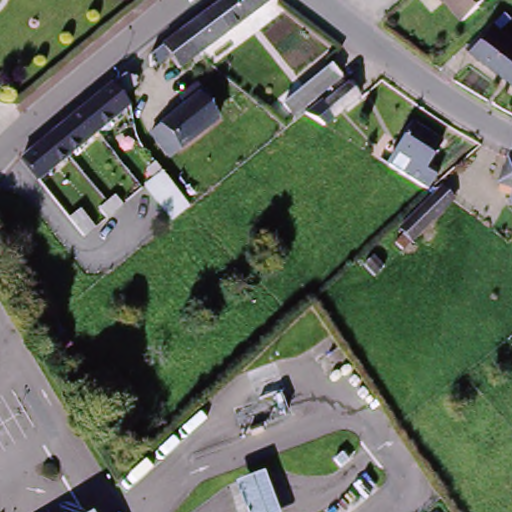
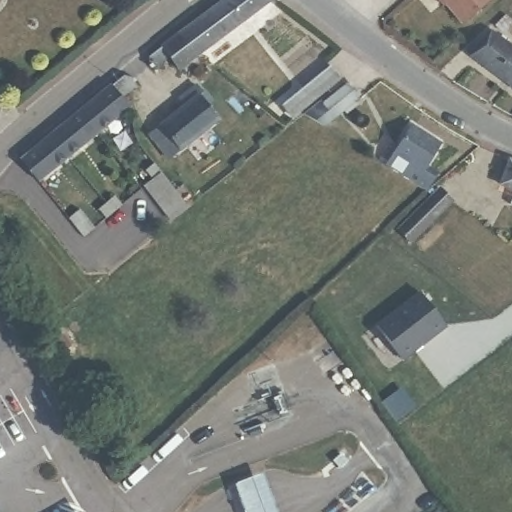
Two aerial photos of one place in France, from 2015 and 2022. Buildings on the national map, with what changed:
unchanged [(170,57),(151,72),(145,63),(183,35),(201,22),(229,0),(271,0),(200,56),(181,71),(170,57)]
unchanged [(464,24),(446,0),(495,0),(464,24)]
unchanged [(469,52),(487,29),(512,47),(512,85),(469,52)]
unchanged [(336,75),(289,112),(280,101),(326,64),(336,75)]
unchanged [(78,150),(63,129),(114,87),(129,76),(133,78),(137,77),(138,82),(135,84),(137,87),(123,97),(131,109),(78,150)]
unchanged [(219,102),(213,107),(225,121),(176,159),(157,135),(194,106),(188,97),(203,86),(209,94),(211,92),(219,102)]
unchanged [(343,92),(354,105),(330,124),(319,111),(343,92)]
unchanged [(431,189),(402,169),(403,167),(393,160),(396,155),(394,154),(412,126),(441,143),(427,167),(439,174),(431,189)]
unchanged [(23,162),(63,129),(78,150),(38,181),(23,162)]
unchanged [(511,191),(497,186),(507,160),(512,162),(512,206),(506,204),(511,191)]
unchanged [(412,242),(405,235),(400,231),(443,190),(454,202),(412,242)]
new [(449,326),(404,362),(375,326),(417,292),(449,326)]
unchanged [(251,512),(240,482),(268,472),(282,512),(251,512)]
unchanged [(96,512),(92,512),(95,511),(96,512)]

